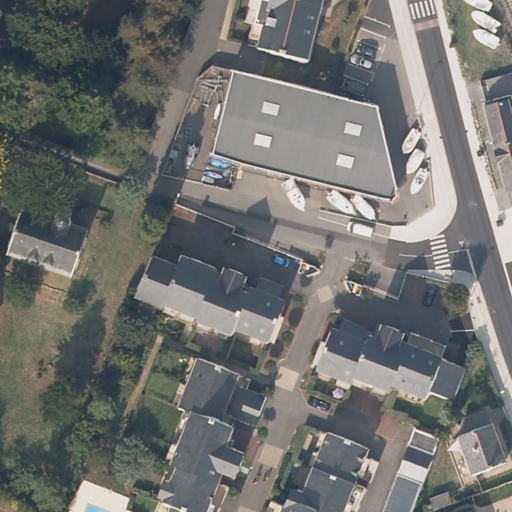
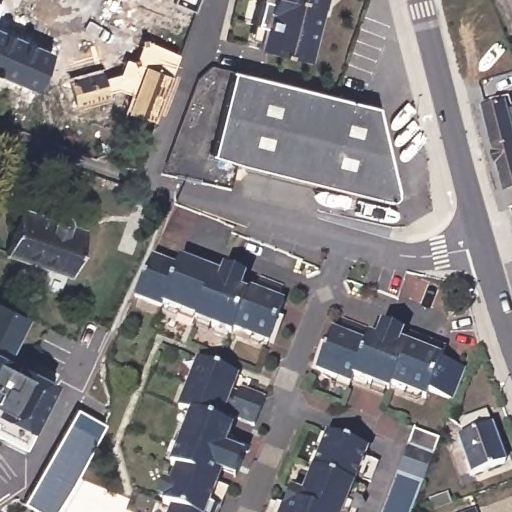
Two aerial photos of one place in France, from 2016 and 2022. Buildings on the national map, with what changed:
unchanged [(267,52),(267,51),(255,47),(260,27),(252,24),(258,0),(265,0),(267,1),(267,0),(321,0),(305,61),(267,52)]
unchanged [(210,157),(227,88),(230,76),(246,80),(252,81),(377,112),(398,195),(387,200),(210,157)]
unchanged [(512,107),(512,211),(511,211),(484,106),(510,99),(512,107)]
unchanged [(64,216),(67,217),(70,220),(70,222),(70,226),(88,233),(70,278),(5,254),(24,207),(55,221),(58,217),(61,216),(64,216)]
unchanged [(252,282),(275,291),(270,303),(277,306),(271,318),(278,322),(268,347),(228,331),(225,337),(188,323),(190,320),(156,307),(155,310),(127,299),(144,261),(169,271),(173,259),(208,272),(206,277),(215,282),(219,272),(238,279),(234,288),(242,291),(247,293),(252,282)]
new [(6,362),(14,366),(18,362),(59,382),(24,447),(23,450),(0,440),(0,302),(31,317),(6,362)]
unchanged [(332,388),(335,381),(310,370),(320,343),(325,347),(331,333),(336,337),(340,329),(362,338),(359,345),(365,348),(369,341),(375,343),(381,328),(402,337),(399,345),(405,347),(410,336),(445,350),(440,363),(463,373),(451,405),(429,396),(425,403),(390,390),(387,396),(352,381),(350,386),(345,394),(332,388)]
unchanged [(209,488),(220,492),(212,512),(163,512),(164,511),(154,506),(167,472),(160,468),(181,416),(170,411),(189,362),(228,378),(222,392),(230,396),(233,391),(257,400),(246,429),(223,420),(215,417),(210,427),(224,432),(215,452),(235,461),(226,482),(214,477),(209,488)]
new [(40,512),(22,502),(76,405),(106,422),(55,512),(40,512)]
unchanged [(495,432),(496,432),(508,468),(476,480),(463,443),(467,442),(464,433),(468,425),(490,417),(495,432)]
unchanged [(427,477),(414,512),(385,512),(415,433),(440,444),(427,477)]
unchanged [(297,500),(322,437),(361,452),(348,488),(361,494),(354,512),(279,512),(285,495),(297,500)]
unchanged [(455,500),(438,506),(435,496),(451,490),(455,500)]
unchanged [(276,512),(263,512),(265,507),(276,512)]
unchanged [(467,512),(477,508),(479,512),(467,512)]

